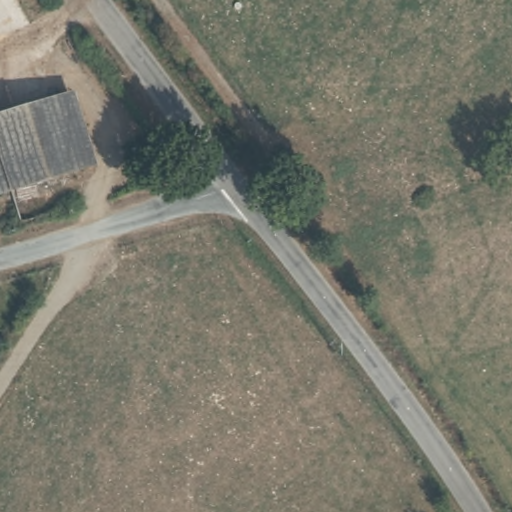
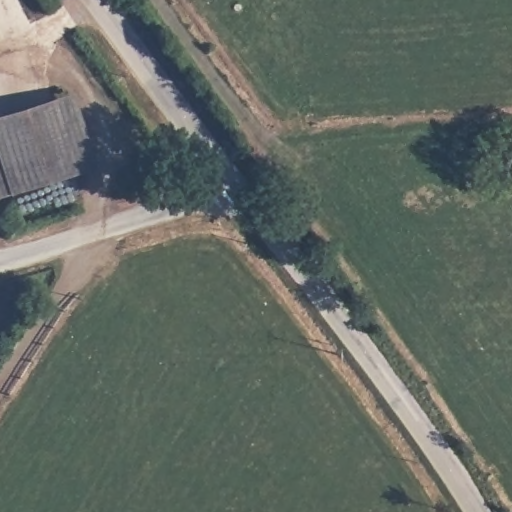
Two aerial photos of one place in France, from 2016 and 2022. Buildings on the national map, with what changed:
unchanged [(93,163),(0,195),(0,116),(68,92),(93,163)]

